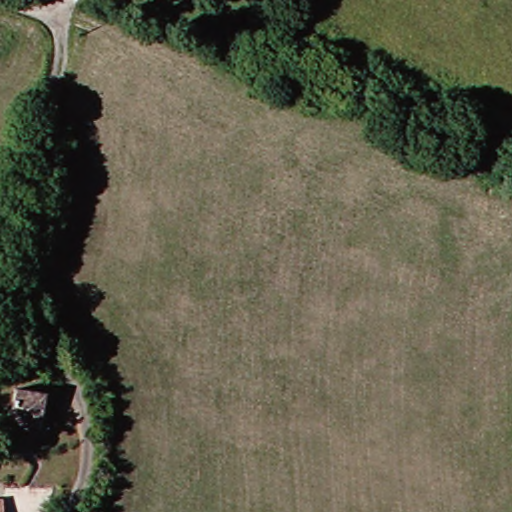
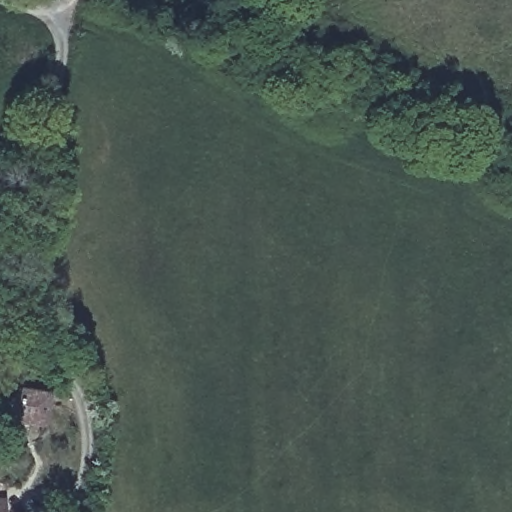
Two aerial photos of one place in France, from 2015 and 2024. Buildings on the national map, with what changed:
unchanged [(48,392),(47,421),(17,419),(18,391),(48,392)]
unchanged [(3,512),(0,512),(0,503),(5,504),(3,512)]

